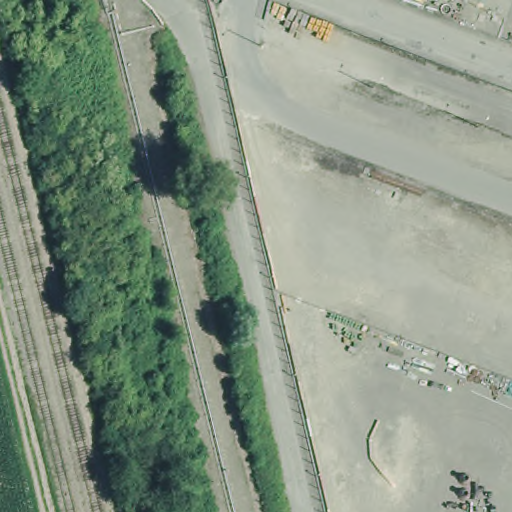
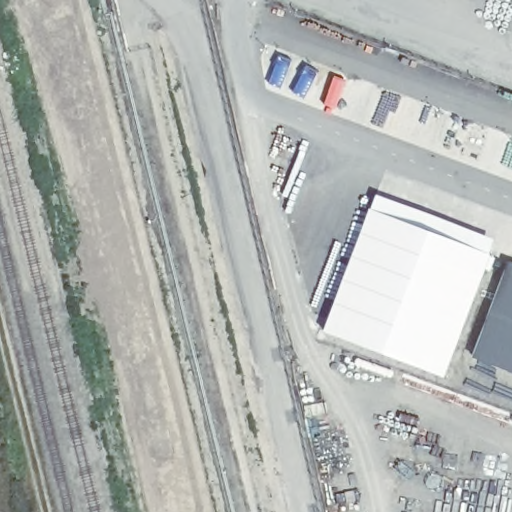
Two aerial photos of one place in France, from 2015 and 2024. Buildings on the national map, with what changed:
new [(373,210),(377,195),(493,241),(487,255),(490,256),(442,378),(325,331),(370,209),(373,210)]
new [(472,359),(509,261),(512,263),(512,373),(472,359)]

